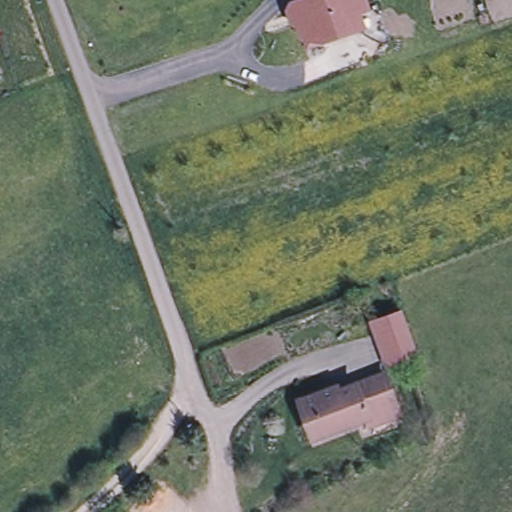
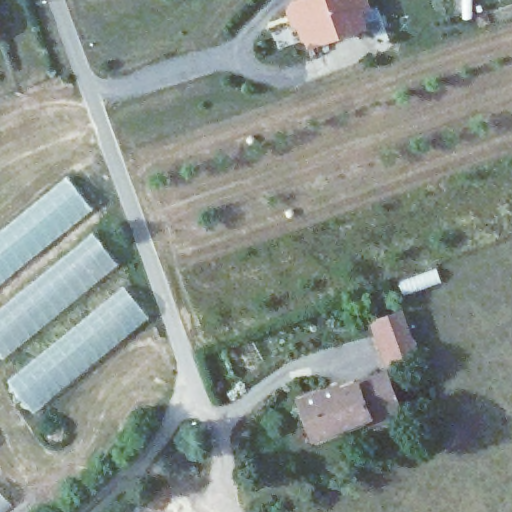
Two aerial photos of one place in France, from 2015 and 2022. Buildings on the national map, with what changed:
unchanged [(286,14),(285,11),(289,4),(300,0),(360,0),(363,7),(373,4),(380,27),(386,42),(378,44),(361,35),(360,34),(358,28),(304,47),(295,22),(289,24),(286,15),(286,14)]
new [(0,287),(0,233),(66,178),(93,210),(0,287)]
new [(3,363),(0,358),(0,312),(90,234),(119,269),(3,363)]
new [(120,288),(150,319),(34,415),(9,381),(120,288)]
unchanged [(402,310),(414,346),(417,353),(389,363),(386,355),(374,320),(402,310)]
unchanged [(328,389),(329,392),(386,373),(400,413),(370,423),(368,417),(313,437),(299,399),(328,389)]
new [(9,512),(0,512),(0,493),(13,509),(9,512)]

